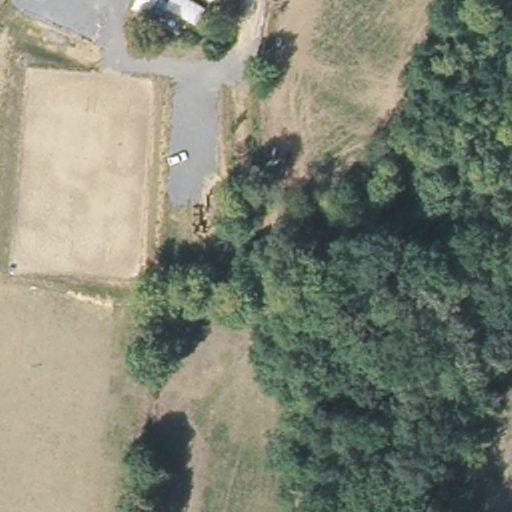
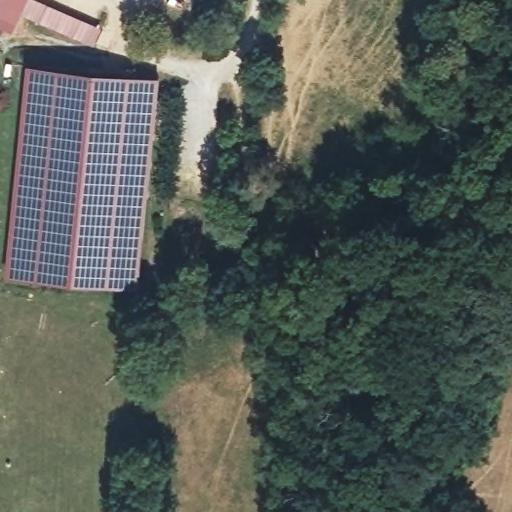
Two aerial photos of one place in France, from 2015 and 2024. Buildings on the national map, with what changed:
new [(17,25),(0,15),(0,0),(28,0),(17,25)]
new [(136,290),(6,276),(28,65),(159,77),(136,290)]

